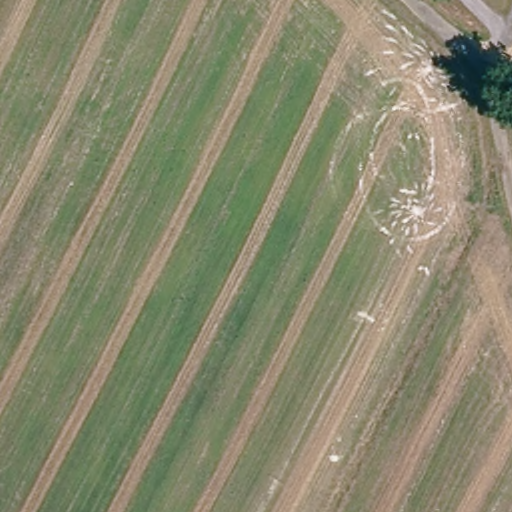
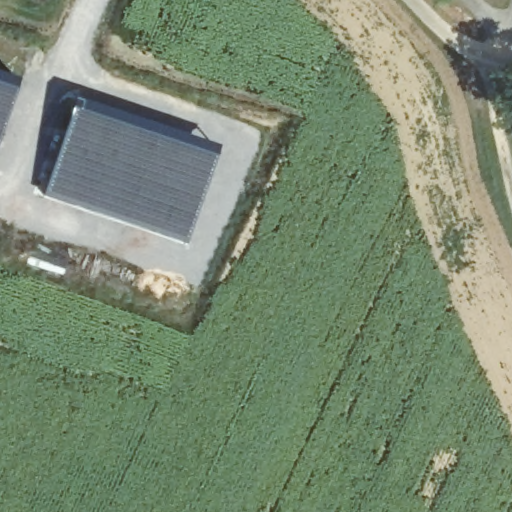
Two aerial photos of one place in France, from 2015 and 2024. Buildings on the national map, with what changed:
new [(19,91),(0,143),(0,84),(19,91)]
new [(74,100),(115,114),(113,120),(152,133),(155,126),(220,149),(186,245),(43,197),(74,100)]

